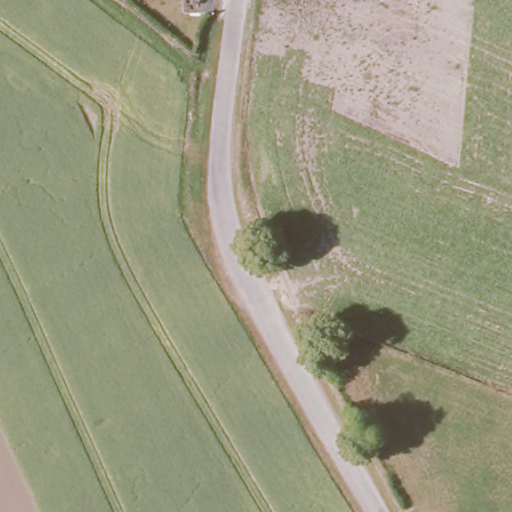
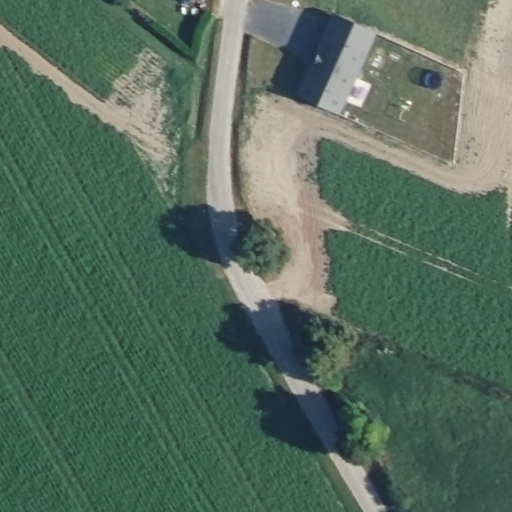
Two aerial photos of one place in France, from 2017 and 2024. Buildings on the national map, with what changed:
new [(337,110),(295,91),(309,61),(311,60),(317,48),(315,48),(328,18),(332,9),(373,28),(370,36),(337,110)]

